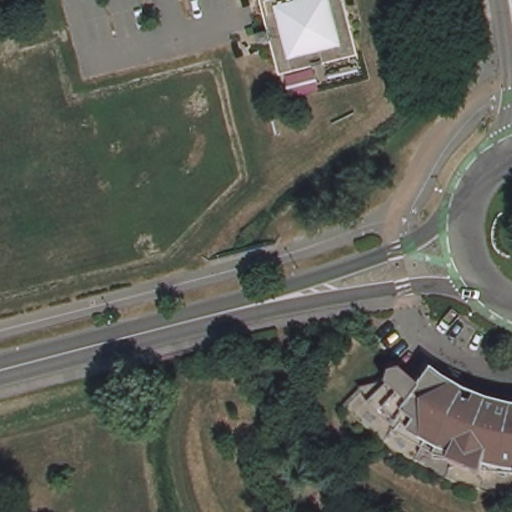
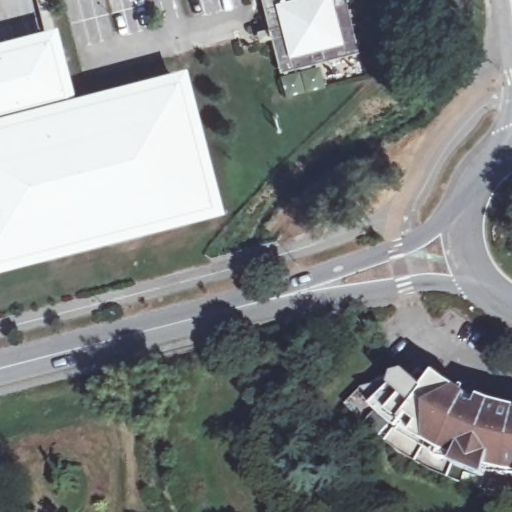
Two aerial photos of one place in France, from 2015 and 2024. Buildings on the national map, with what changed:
unchanged [(268,26),(261,0),(345,0),(358,51),(279,71),(271,36),(259,39),(256,29),(268,26)]
new [(0,44),(53,30),(71,100),(0,118),(0,44)]
new [(0,118),(71,100),(181,72),(221,217),(0,274),(0,118)]
unchanged [(508,490),(499,488),(487,485),(472,480),(460,476),(449,471),(437,466),(429,461),(421,457),(410,450),(403,445),(395,440),(388,434),(381,428),(374,422),(369,417),(364,413),(358,406),(354,402),(369,385),(368,384),(378,381),(386,373),(407,368),(415,375),(425,365),(431,370),(434,366),(436,365),(441,366),(448,372),(459,380),(468,385),(480,391),(493,397),(504,401),(512,403),(512,491),(508,490)]

